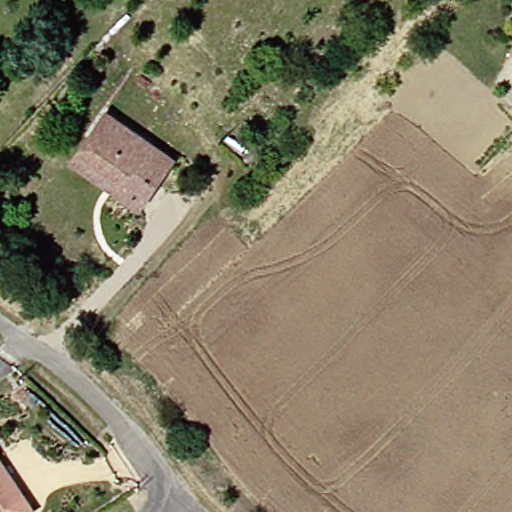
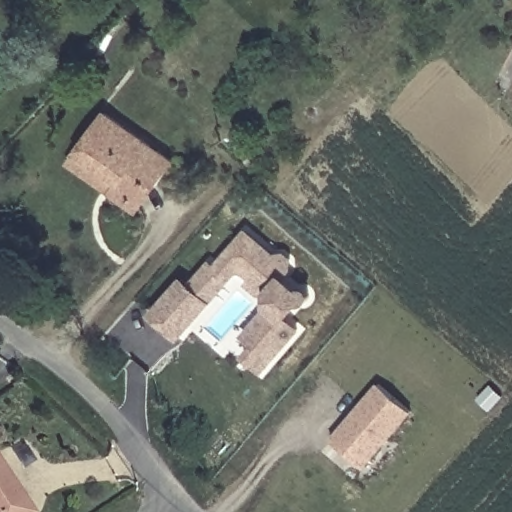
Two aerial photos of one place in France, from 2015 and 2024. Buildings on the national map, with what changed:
unchanged [(128,203),(109,188),(68,155),(74,148),(105,110),(173,165),(154,188),(135,209),(128,203)]
new [(260,307),(259,292),(264,287),(249,275),(244,280),(219,257),(239,234),(267,258),(274,258),(282,264),(282,273),(274,281),(290,295),(292,293),(295,294),(298,297),(297,301),(295,302),(292,302),(291,301),(276,318),(289,331),(254,371),(238,357),(258,334),(246,324),(260,307)]
new [(209,268),(219,257),(232,269),(222,280),(209,268)]
new [(184,286),(204,264),(222,280),(202,303),(184,286)]
new [(249,275),(264,287),(259,292),(252,293),(242,283),(249,275)]
new [(171,336),(157,323),(145,312),(175,279),(187,290),(202,303),(171,336)]
new [(258,334),(248,346),(236,336),(246,324),(258,334)]
new [(408,411),(362,465),(329,436),(376,383),(408,411)]
unchanged [(26,512),(0,512),(0,466),(29,510),(26,512)]

